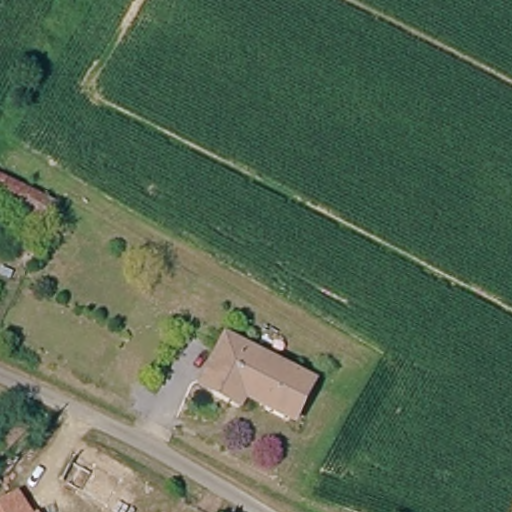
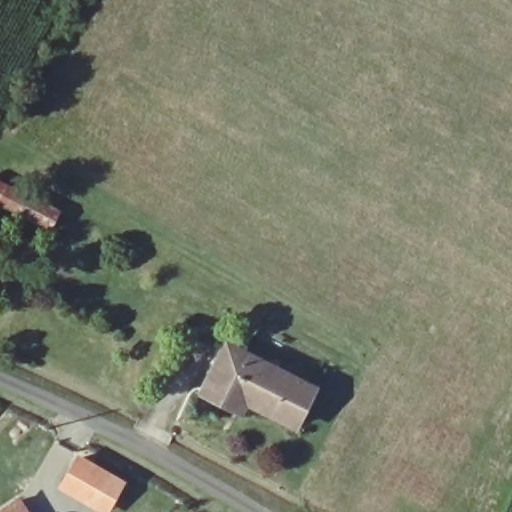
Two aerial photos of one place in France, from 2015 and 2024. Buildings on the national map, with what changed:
unchanged [(59,233),(0,206),(0,184),(65,213),(59,233)]
unchanged [(321,396),(302,431),(240,398),(235,407),(209,393),(234,348),(321,396)]
unchanged [(29,423),(0,453),(0,443),(24,419),(29,423)]
new [(109,512),(102,512),(58,487),(78,453),(126,479),(109,512)]
demolished [(176,512),(113,512),(66,481),(85,454),(176,512)]
unchanged [(30,512),(0,512),(0,506),(20,494),(30,512)]

